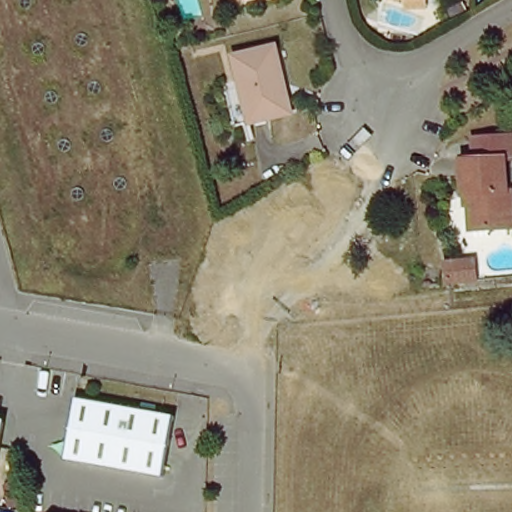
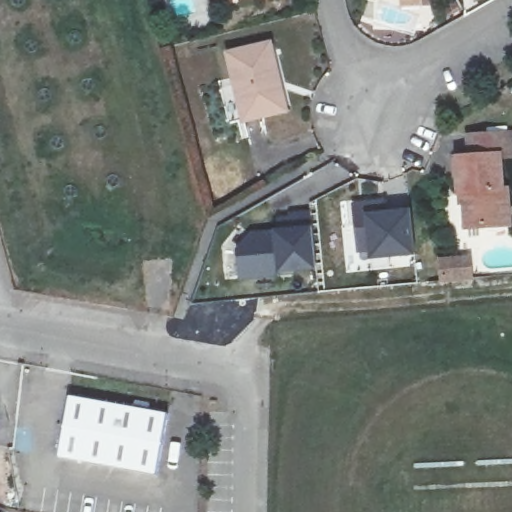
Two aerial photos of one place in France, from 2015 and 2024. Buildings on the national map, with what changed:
unchanged [(280,109),(248,117),(231,50),(275,39),(283,73),(291,107),(280,109)]
unchanged [(471,172),(471,151),(512,151),(512,172),(499,172),(501,202),(506,202),(506,240),(464,239),(462,205),(458,205),(457,172),(471,172)]
new [(368,252),(369,211),(368,245),(356,245),(358,206),(368,200),(384,201),(384,212),(414,212),(413,254),(368,252)]
new [(281,273),(281,272),(242,275),(240,247),(255,230),(283,229),(282,220),(295,219),(294,212),(315,210),(319,266),(294,267),(294,272),(282,273),(281,273)]
unchanged [(435,290),(436,266),(466,265),(468,287),(435,290)]
unchanged [(80,396),(171,411),(161,472),(71,456),(61,454),(71,394),(80,396)]

